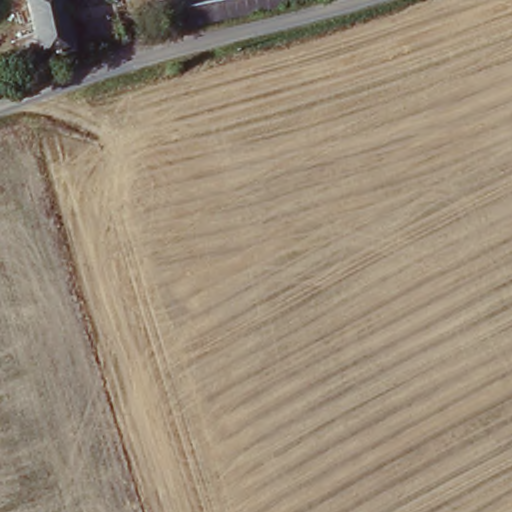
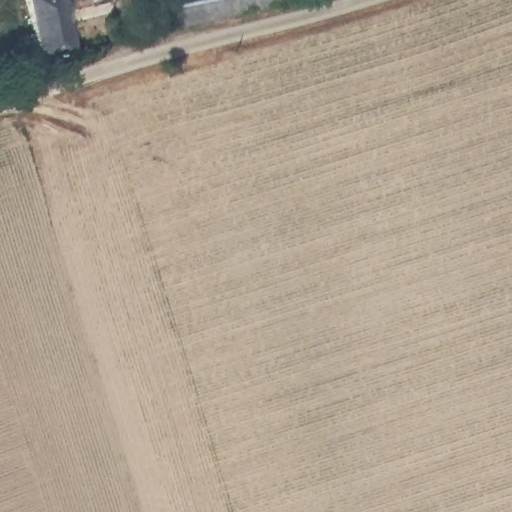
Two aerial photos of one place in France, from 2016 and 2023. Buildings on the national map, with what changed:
unchanged [(74,50),(40,57),(29,0),(63,0),(74,50)]
unchanged [(153,0),(275,0),(222,17),(188,26),(179,29),(163,32),(153,0)]

